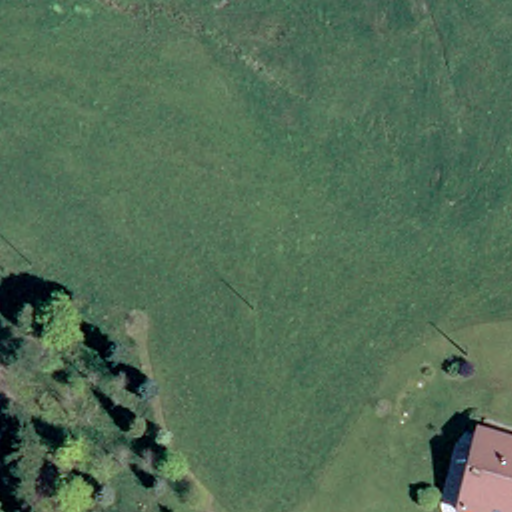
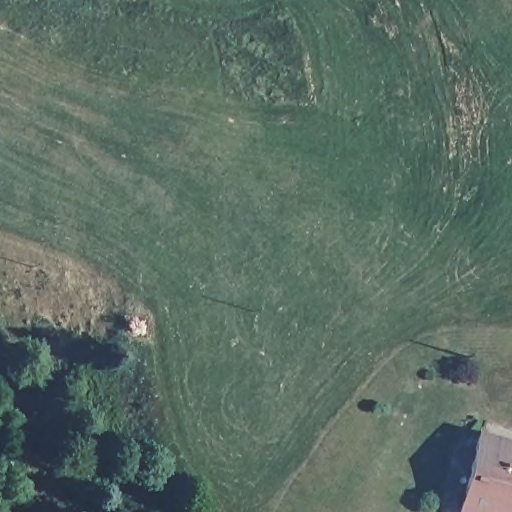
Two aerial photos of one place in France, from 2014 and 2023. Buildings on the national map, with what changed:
unchanged [(459,511),(474,471),(486,435),(512,445),(512,512),(461,512),(459,511)]

